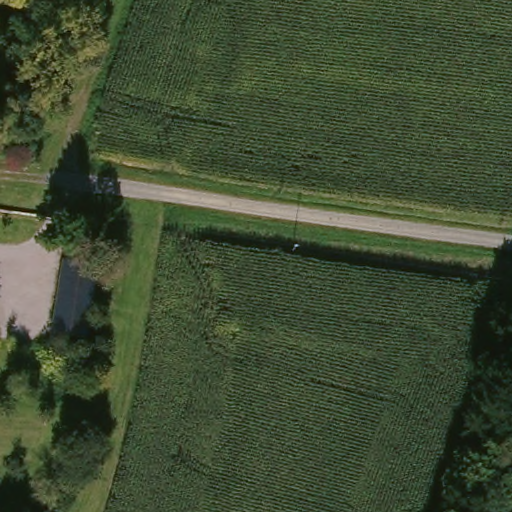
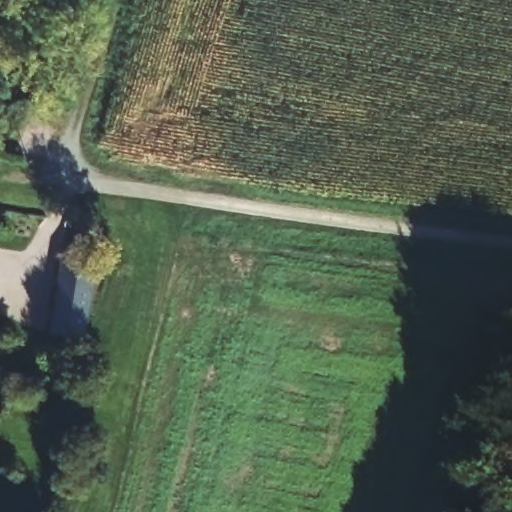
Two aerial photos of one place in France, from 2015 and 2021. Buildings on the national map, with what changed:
unchanged [(55,262),(87,267),(80,319),(76,340),(45,335),(55,262)]

